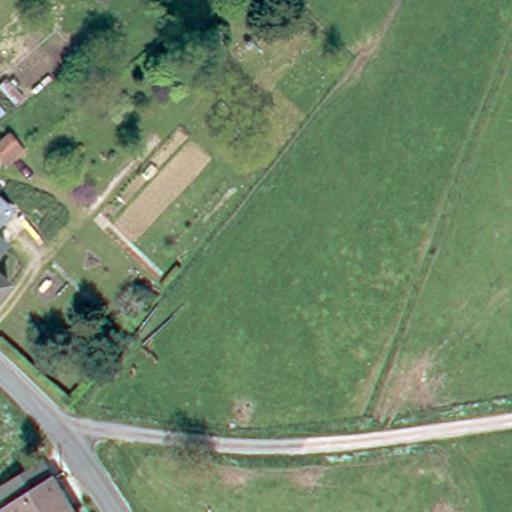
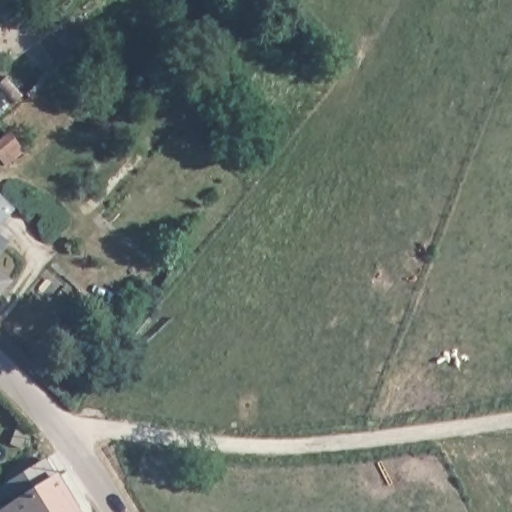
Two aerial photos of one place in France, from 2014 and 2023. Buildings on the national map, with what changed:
unchanged [(0,139),(0,112),(20,131),(6,145),(0,139)]
unchanged [(19,216),(0,237),(0,199),(19,216)]
unchanged [(10,250),(0,262),(0,241),(10,250)]
unchanged [(13,287),(0,301),(0,276),(13,287)]
unchanged [(7,512),(3,506),(64,473),(87,512),(7,512)]

